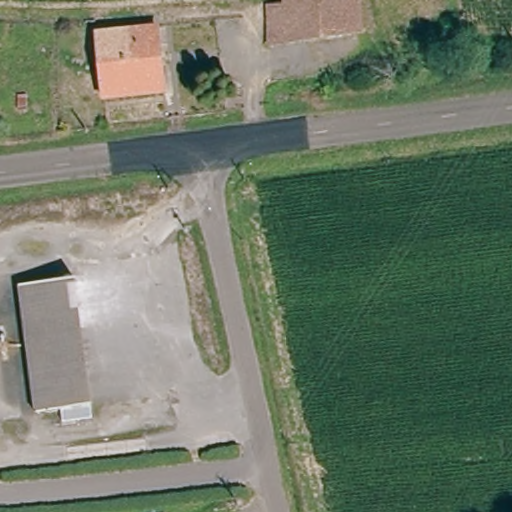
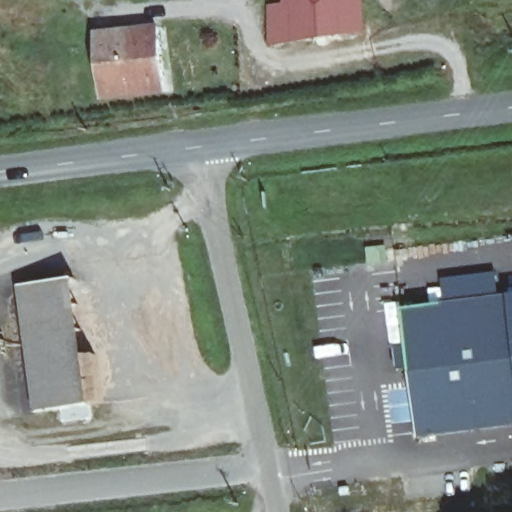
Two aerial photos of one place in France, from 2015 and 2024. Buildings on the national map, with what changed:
unchanged [(360,35),(270,40),(270,19),(270,0),(359,0),(360,35)]
unchanged [(154,30),(163,92),(104,99),(97,35),(154,30)]
new [(495,274),(499,297),(444,304),(441,280),(495,274)]
unchanged [(15,285),(70,277),(89,405),(32,411),(15,285)]
new [(512,296),(512,427),(417,438),(408,370),(395,371),(393,350),(406,348),(401,310),(444,304),(499,297),(512,296)]

